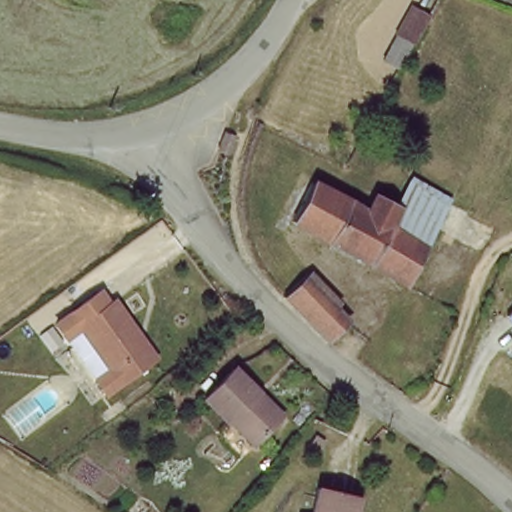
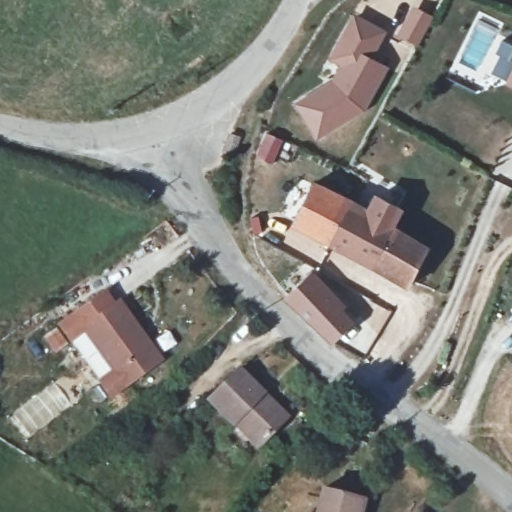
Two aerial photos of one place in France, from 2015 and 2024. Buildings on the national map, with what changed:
unchanged [(389,56),(420,7),(435,17),(416,45),(413,51),(403,65),(389,56)]
new [(332,81),(341,64),(329,57),(354,12),(388,32),(374,57),(390,67),(365,112),(319,139),(295,102),(332,81)]
unchanged [(512,86),(506,84),(512,69),(512,86)]
unchanged [(395,222),(430,244),(403,285),(286,219),(306,179),(370,210),(380,193),(404,207),(395,222)]
unchanged [(289,298),(313,271),(349,308),(345,312),(355,322),(332,346),(289,298)]
unchanged [(154,360),(126,382),(111,394),(100,381),(114,370),(80,328),(66,338),(56,323),(73,312),(101,292),(112,305),(117,301),(141,333),(159,356),(154,360)]
unchanged [(234,419),(209,396),(239,363),(287,411),(264,437),(258,442),(234,419)]
unchanged [(282,432),(291,440),(282,448),(273,442),(282,432)]
unchanged [(324,486),(365,500),(360,512),(315,512),(324,486)]

